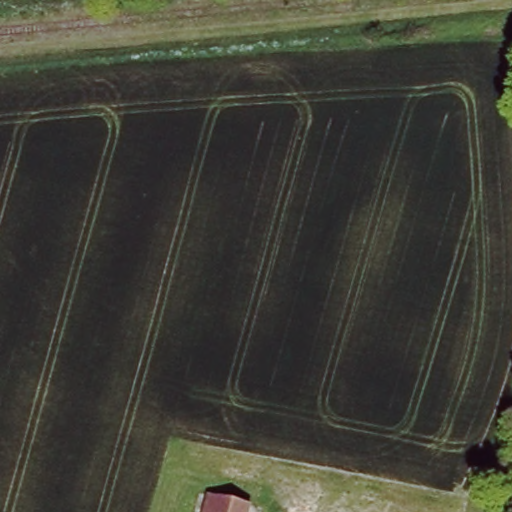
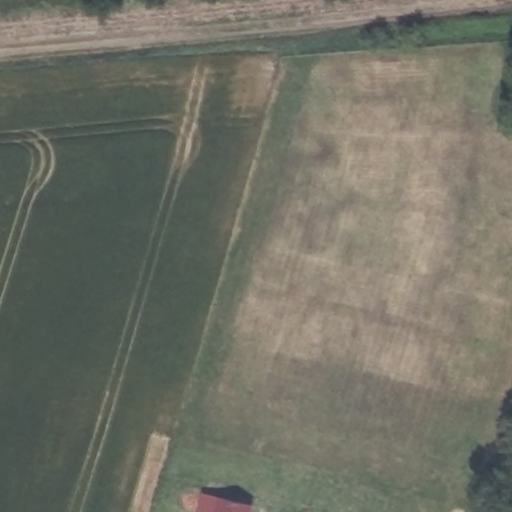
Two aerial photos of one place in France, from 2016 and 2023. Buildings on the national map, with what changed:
unchanged [(208,493),(253,504),(252,512),(204,512),(208,493)]

